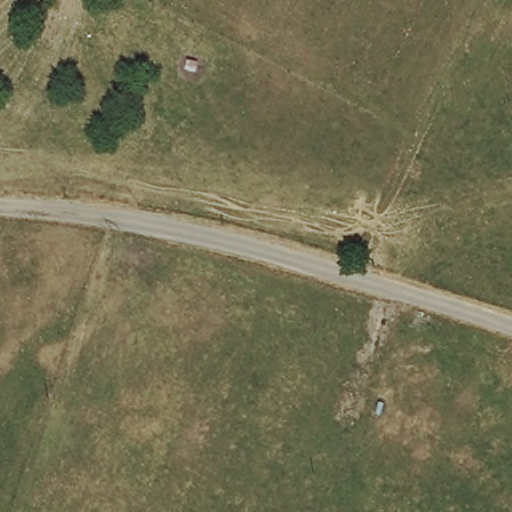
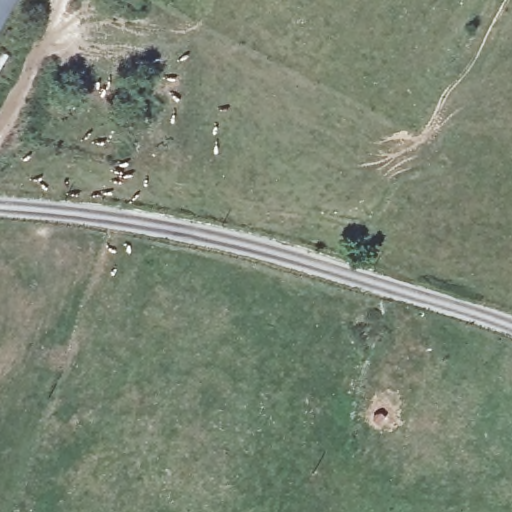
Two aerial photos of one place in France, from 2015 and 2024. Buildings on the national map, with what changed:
new [(17,0),(0,29),(0,0),(17,0)]

